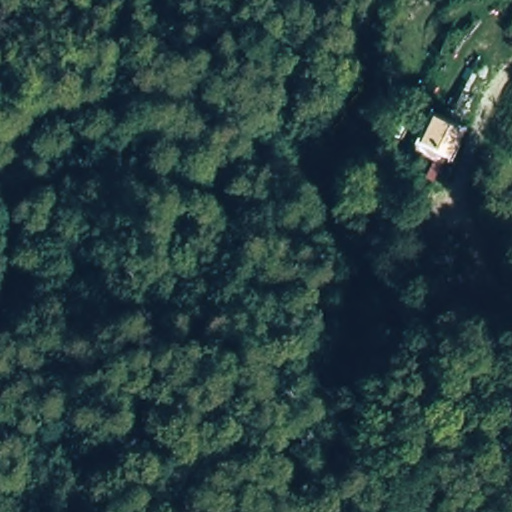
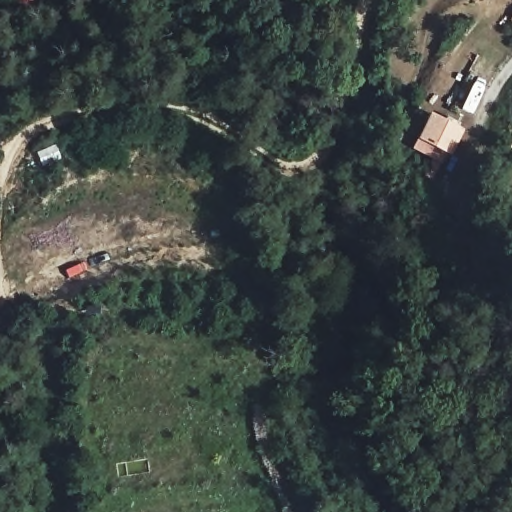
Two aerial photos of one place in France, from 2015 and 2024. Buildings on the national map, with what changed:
unchanged [(460,129),(448,155),(447,159),(411,142),(415,134),(427,112),(460,129)]

